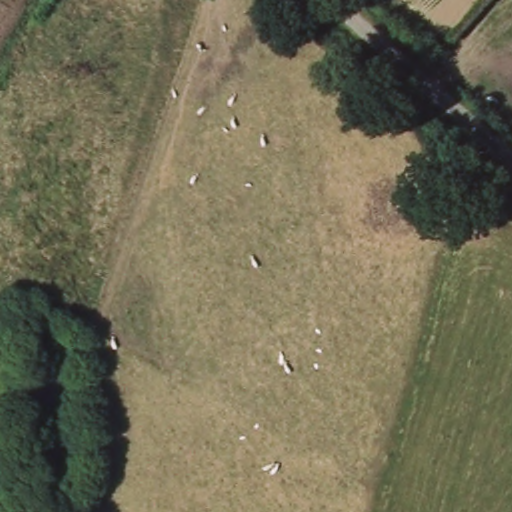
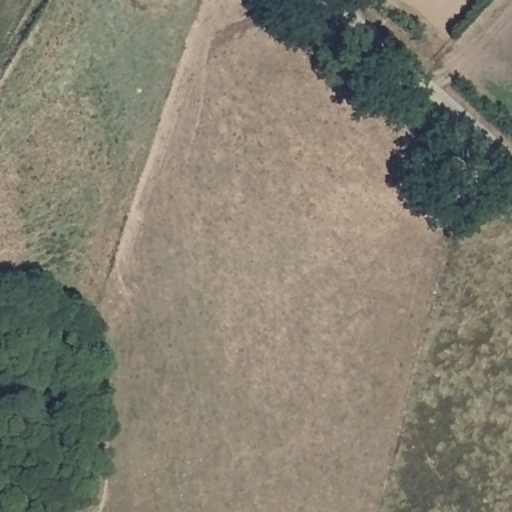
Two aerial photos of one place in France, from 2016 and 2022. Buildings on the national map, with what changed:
[]

